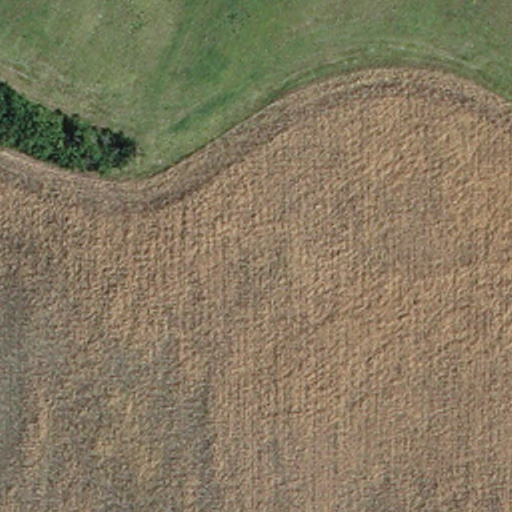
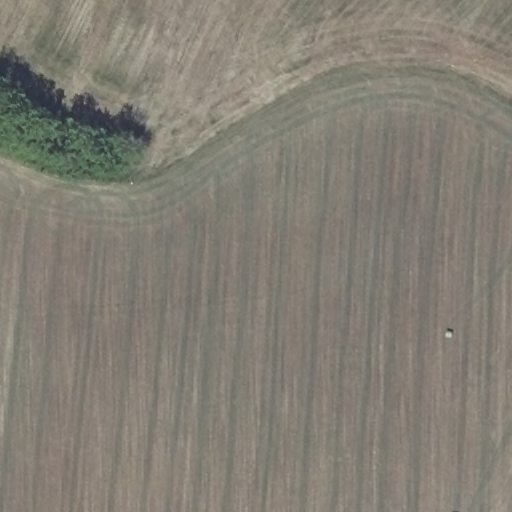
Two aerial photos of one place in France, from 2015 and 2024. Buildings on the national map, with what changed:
[]

